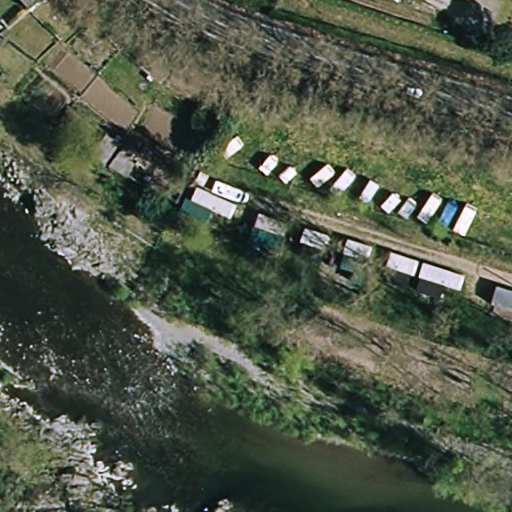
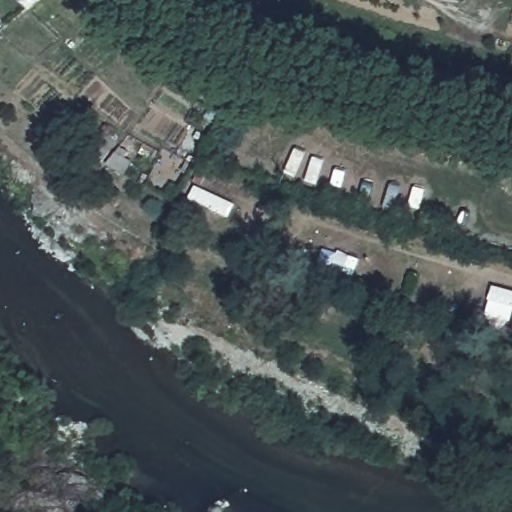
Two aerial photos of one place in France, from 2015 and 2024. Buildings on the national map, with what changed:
unchanged [(19,0),(47,0),(31,14),(19,0)]

